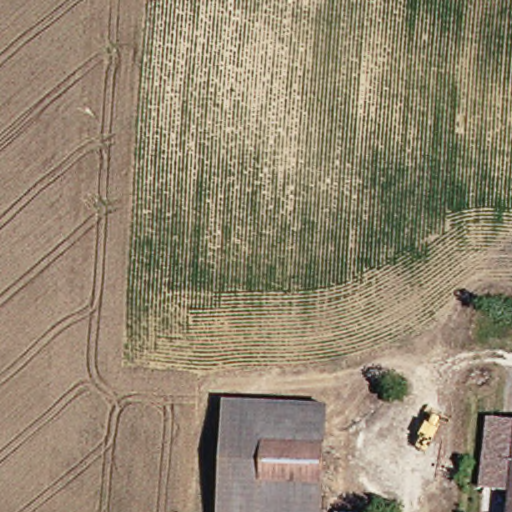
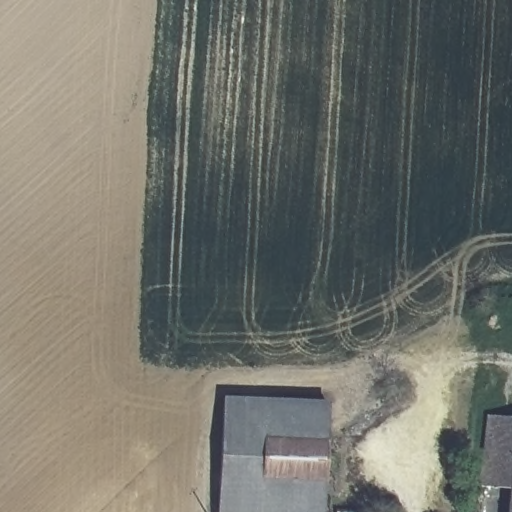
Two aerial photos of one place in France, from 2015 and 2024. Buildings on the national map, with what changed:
unchanged [(220,512),(232,397),(335,407),(324,512),(220,512)]
unchanged [(493,441),(496,417),(512,420),(512,485),(486,484),(493,441)]
unchanged [(512,512),(482,512),(486,484),(512,485),(512,512)]

